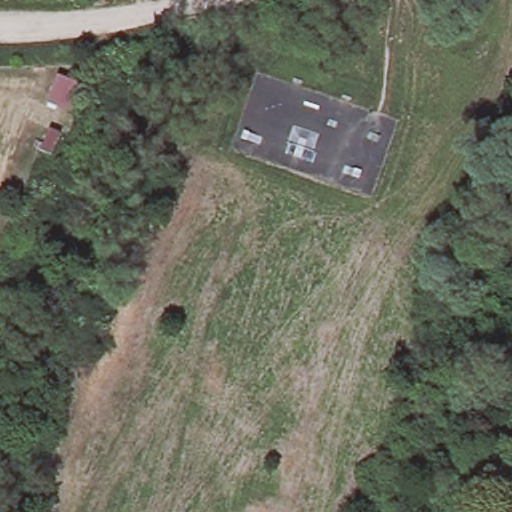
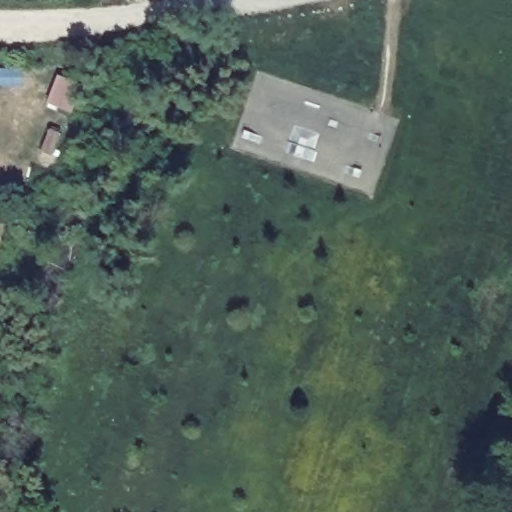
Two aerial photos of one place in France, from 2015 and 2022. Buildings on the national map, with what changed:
unchanged [(80,81),(69,107),(46,99),(57,72),(80,81)]

